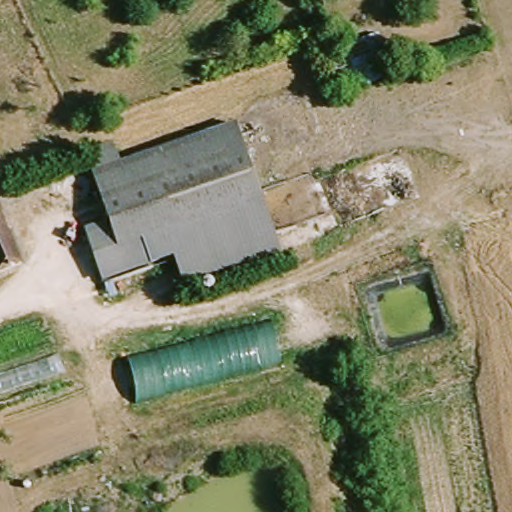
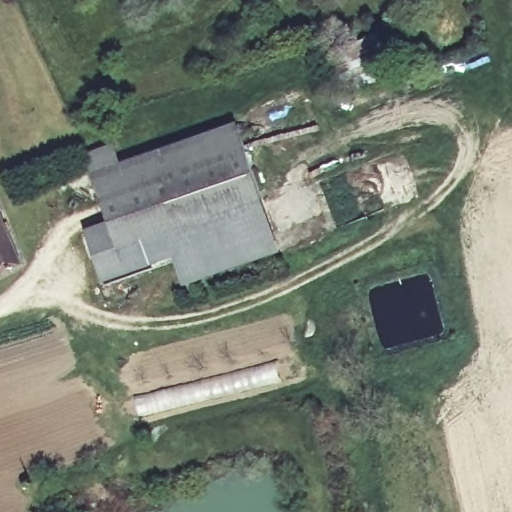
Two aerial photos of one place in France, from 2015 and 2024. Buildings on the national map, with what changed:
unchanged [(355,76),(338,81),(330,49),(378,34),(391,75),(356,86),(355,76)]
unchanged [(100,290),(91,266),(80,242),(85,241),(109,233),(80,151),(108,141),(115,160),(233,120),(258,193),(159,231),(163,245),(171,264),(100,290)]
unchanged [(177,283),(171,264),(163,245),(159,231),(258,193),(276,248),(203,275),(177,283)]
unchanged [(20,258),(0,267),(0,214),(20,258)]
demolished [(129,360),(270,323),(278,363),(135,401),(129,360)]

